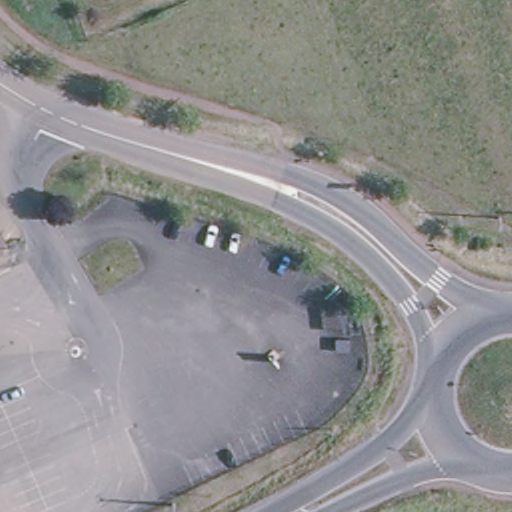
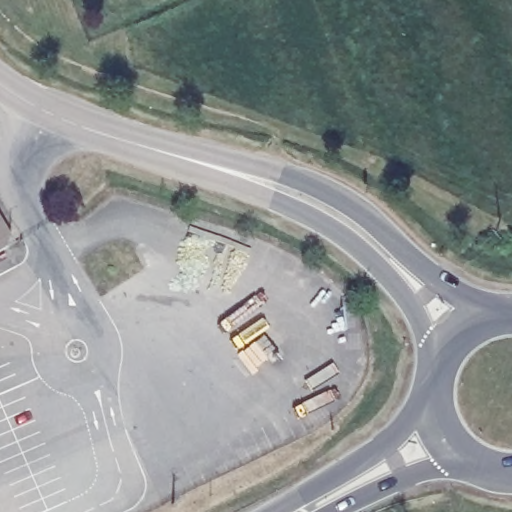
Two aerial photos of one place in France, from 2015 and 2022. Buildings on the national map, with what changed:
unchanged [(0,256),(0,236),(8,251),(0,256)]

